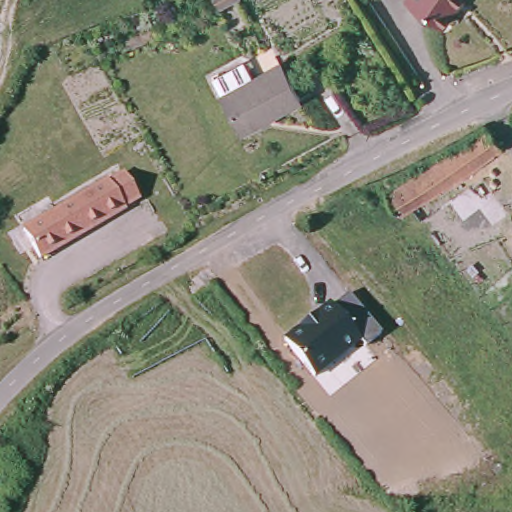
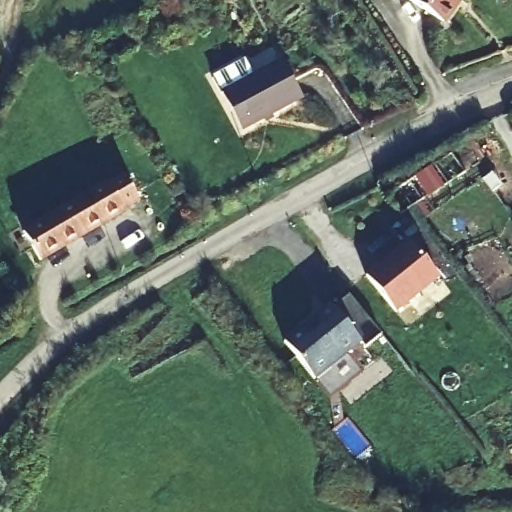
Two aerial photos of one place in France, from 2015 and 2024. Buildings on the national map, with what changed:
unchanged [(350,6),(327,20),(316,0),(346,0),(350,6)]
unchanged [(447,25),(413,3),(408,0),(464,0),(447,25)]
unchanged [(303,101),(250,130),(232,95),(230,97),(220,78),(222,72),(228,70),(230,72),(255,60),(264,76),(285,65),(303,101)]
unchanged [(400,220),(386,199),(385,197),(486,132),(488,130),(503,152),(412,212),(400,220)]
unchanged [(140,198),(125,207),(126,210),(40,260),(23,231),(109,180),(110,183),(125,174),(140,198)]
new [(395,312),(367,275),(410,241),(440,278),(395,312)]
unchanged [(382,335),(365,347),(362,343),(315,379),(283,341),(330,304),(333,307),(349,293),(382,335)]

